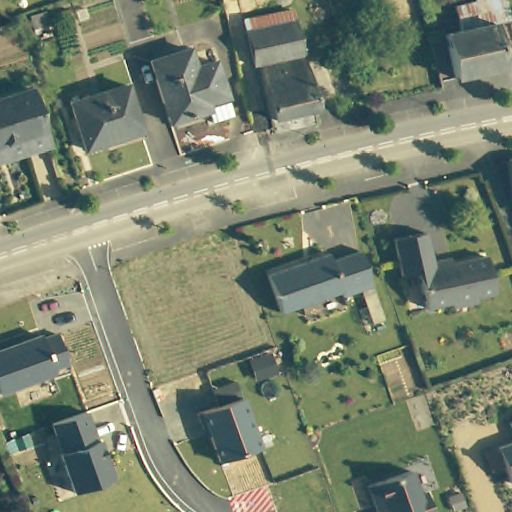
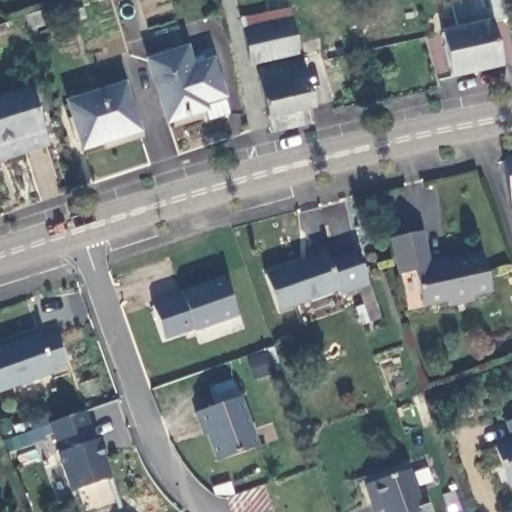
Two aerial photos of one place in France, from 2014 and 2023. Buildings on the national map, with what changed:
unchanged [(490,24),(501,67),(453,78),(443,36),(459,31),(452,7),(473,2),(473,0),(503,0),(509,19),(490,24)]
unchanged [(244,21),(271,15),(290,11),(299,44),(256,54),(251,55),(244,21)]
unchanged [(184,47),(190,67),(203,63),(208,80),(212,79),(223,116),(202,121),(199,111),(164,121),(145,59),(184,47)]
unchanged [(298,47),(311,97),(269,109),(257,57),(298,47)]
unchanged [(0,144),(0,97),(27,87),(43,130),(0,144)]
unchanged [(130,87),(141,127),(123,132),(125,139),(87,149),(74,103),(130,87)]
unchanged [(43,130),(48,145),(0,161),(0,144),(43,130)]
unchanged [(509,196),(503,160),(512,158),(512,210),(509,196)]
unchanged [(400,275),(391,239),(423,232),(430,268),(483,257),(491,293),(472,297),(473,302),(448,307),(447,302),(423,307),(416,272),(400,275)]
unchanged [(330,252),(333,260),(362,249),(374,285),(345,295),(343,291),(281,312),(268,274),(330,252)]
new [(195,332),(193,330),(167,340),(153,304),(224,278),(239,316),(195,332)]
unchanged [(41,334),(43,337),(58,333),(69,363),(54,370),(55,374),(0,393),(0,348),(41,334)]
unchanged [(208,436),(204,437),(198,415),(219,407),(212,387),(235,382),(240,398),(242,397),(261,447),(217,461),(208,436)]
unchanged [(85,415),(87,414),(97,443),(99,442),(113,481),(74,495),(60,456),(62,455),(52,426),(85,415)]
unchanged [(512,420),(512,427),(510,421),(512,420)]
unchanged [(512,485),(510,486),(497,446),(512,440),(512,485)]
unchanged [(424,491),(432,512),(384,512),(380,502),(373,506),(366,486),(408,470),(417,493),(424,491)]

